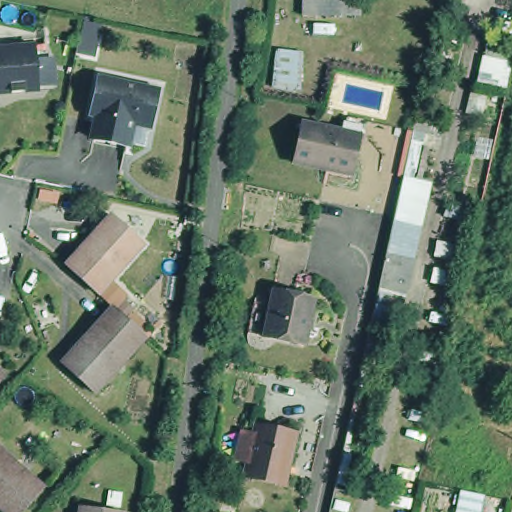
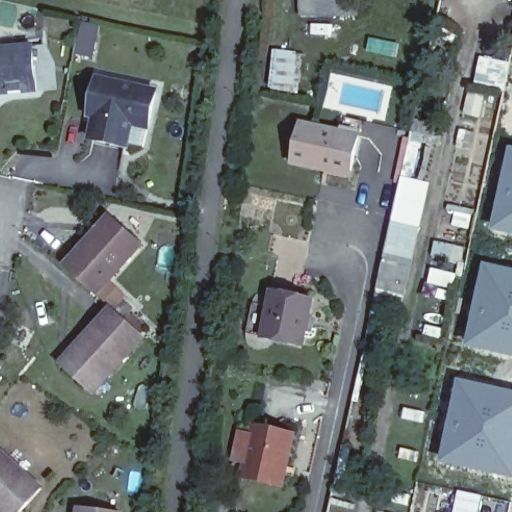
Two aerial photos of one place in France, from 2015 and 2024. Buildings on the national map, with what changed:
unchanged [(336,21),(301,22),(301,0),(337,0),(336,4),(356,4),(356,20),(336,21)]
unchanged [(35,61),(38,88),(0,91),(0,45),(34,43),(35,61)]
unchanged [(301,88),(273,85),(274,47),(301,49),(301,88)]
new [(479,54),(511,63),(504,90),(473,84),(479,54)]
unchanged [(131,117),(126,139),(90,131),(95,109),(90,107),(93,94),(98,71),(156,84),(151,108),(148,120),(131,117)]
unchanged [(328,172),(295,164),(304,124),(341,133),(342,125),(346,126),(348,119),(363,123),(359,136),(363,137),(355,172),(354,178),(328,172)]
unchanged [(412,135),(434,136),(424,174),(439,178),(407,299),(379,288),(412,135)]
unchanged [(75,244),(85,234),(90,239),(113,213),(144,240),(98,290),(68,264),(80,249),(75,244)]
new [(484,262),(512,268),(512,356),(465,344),(484,262)]
unchanged [(306,344),(266,336),(275,286),(316,294),(306,344)]
unchanged [(68,362),(83,346),(78,340),(88,330),(93,334),(119,304),(151,334),(100,391),(68,362)]
unchanged [(0,371),(0,368),(1,369),(0,371)]
unchanged [(424,389),(412,386),(414,374),(427,377),(424,389)]
new [(456,377),(512,390),(512,479),(438,461),(456,377)]
unchanged [(296,430),(287,479),(248,471),(249,459),(237,458),(243,428),(255,430),(256,423),(296,430)]
unchanged [(0,442),(49,486),(25,512),(15,512),(5,503),(1,508),(0,507),(0,442)]
unchanged [(457,489),(479,494),(475,512),(453,512),(457,489)]
unchanged [(88,503),(128,509),(128,512),(86,512),(88,503)]

